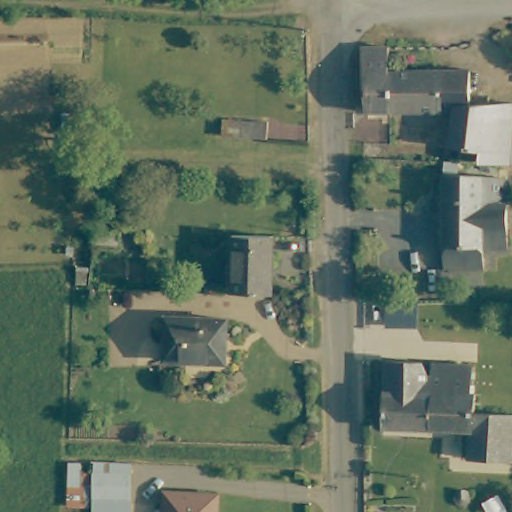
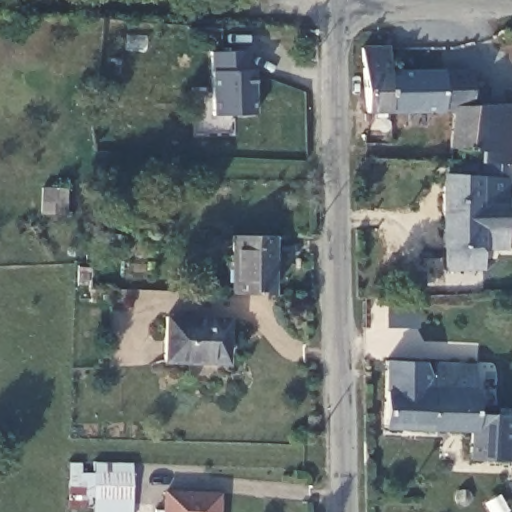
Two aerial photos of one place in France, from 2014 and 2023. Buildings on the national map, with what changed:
unchanged [(380,66),(383,110),(358,109),(354,45),(379,41),(380,66)]
new [(247,50),(249,69),(255,69),(258,113),(212,115),(209,52),(247,50)]
unchanged [(465,67),(466,99),(509,100),(503,147),(502,161),(474,160),(474,146),(469,146),(469,159),(443,158),(445,110),(383,110),(380,66),(465,67)]
demolished [(213,132),(214,116),(232,117),(232,133),(213,132)]
demolished [(237,133),(237,117),(264,118),(264,134),(237,133)]
unchanged [(454,175),(501,174),(503,246),(479,245),(478,267),(438,268),(439,243),(436,243),(436,194),(440,162),(441,162),(454,163),(454,175)]
unchanged [(271,297),(231,293),(233,237),(271,239),(271,297)]
unchanged [(225,320),(225,337),(221,337),(219,361),(168,360),(169,317),(225,320)]
unchanged [(481,394),(481,415),(512,418),(512,462),(475,461),(475,434),(387,429),(388,421),(370,419),(371,379),(389,379),(390,361),(427,364),(434,377),(438,377),(439,364),(476,366),(475,393),(481,394)]
unchanged [(130,481),(130,512),(93,512),(93,480),(93,464),(131,464),(130,481)]
unchanged [(456,492),(455,483),(466,483),(467,494),(456,492)]
unchanged [(217,494),(217,512),(159,512),(159,510),(168,511),(168,493),(217,494)]

